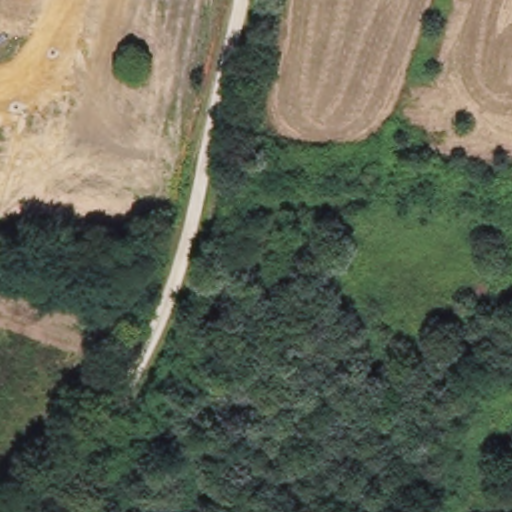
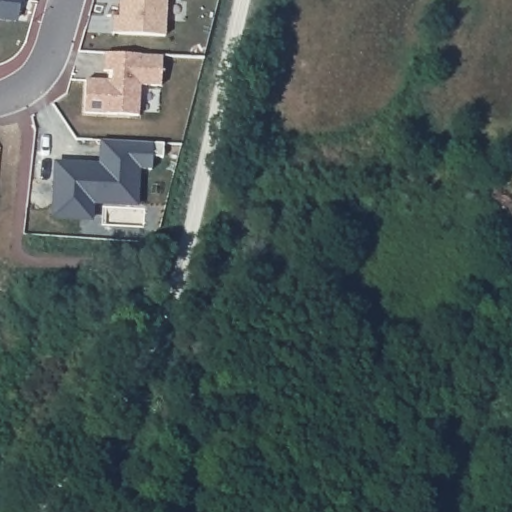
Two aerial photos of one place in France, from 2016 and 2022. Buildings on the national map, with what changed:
new [(15,20),(0,18),(0,0),(17,0),(15,20)]
new [(113,17),(119,17),(120,0),(167,0),(165,37),(113,34),(113,17)]
new [(87,81),(113,82),(113,72),(104,72),(105,54),(163,57),(162,87),(141,86),(139,117),(85,114),(87,81)]
new [(77,220),(53,219),(56,172),(64,165),(86,166),(101,167),(102,141),(163,145),(163,158),(152,157),(152,170),(138,170),(136,206),(91,204),(91,221),(77,220)]

